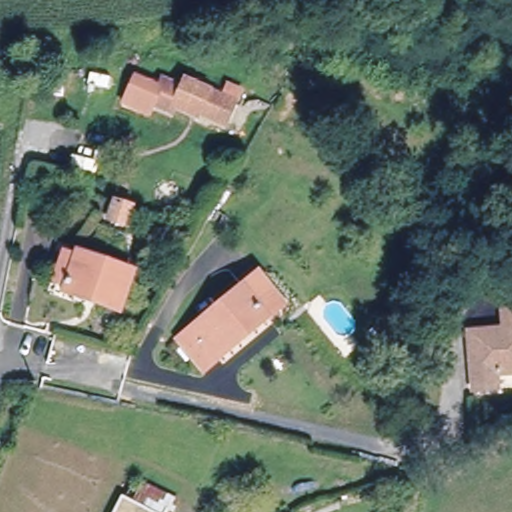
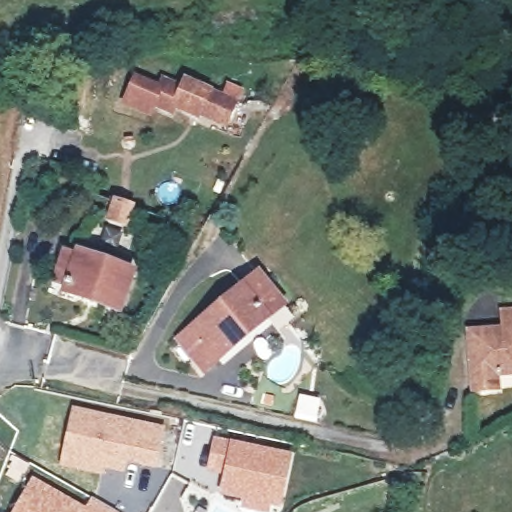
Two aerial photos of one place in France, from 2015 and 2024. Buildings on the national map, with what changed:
unchanged [(217,127),(201,119),(199,123),(176,113),(172,120),(154,111),(164,89),(183,98),(187,90),(223,107),(230,93),(240,98),(234,112),(225,130),(217,127)]
unchanged [(117,311),(100,305),(101,302),(82,296),(81,298),(63,292),(66,286),(53,282),(65,248),(77,252),(131,271),(117,311)]
unchanged [(176,339),(244,284),(257,273),(282,304),(286,310),(272,320),(268,315),(201,370),(176,339)]
unchanged [(494,373),(499,387),(477,395),(458,341),(483,332),(485,336),(492,334),(486,314),(512,305),(512,367),(494,373)]
new [(165,426),(156,469),(127,464),(125,473),(104,470),(103,474),(62,463),(74,407),(165,426)]
new [(291,454),(280,507),(270,504),(268,512),(263,512),(242,507),(245,498),(219,493),(223,471),(207,469),(214,436),(291,454)]
new [(94,496),(121,511),(120,512),(12,512),(34,476),(86,507),(94,496)]
demolished [(120,494),(123,496),(153,512),(111,512),(120,494)]

